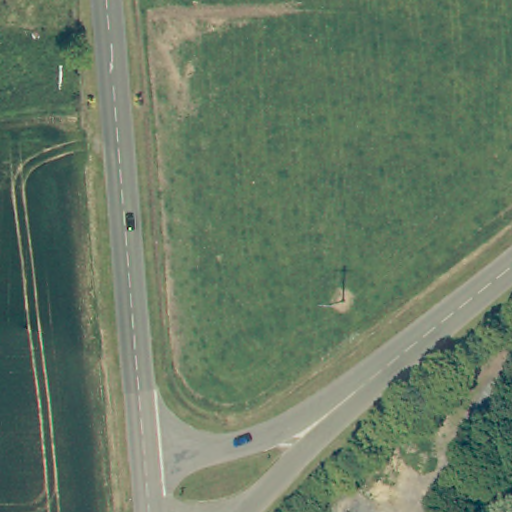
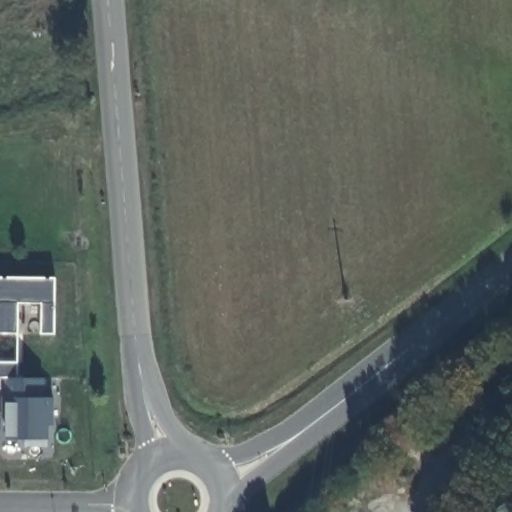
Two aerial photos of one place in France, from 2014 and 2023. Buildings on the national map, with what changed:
new [(39,334),(40,303),(17,302),(17,333),(0,333),(0,277),(54,277),(54,334),(39,334)]
new [(43,377),(42,397),(54,398),(53,426),(48,426),(47,447),(25,447),(24,440),(4,442),(5,379),(0,378),(0,333),(17,333),(17,377),(43,377)]

